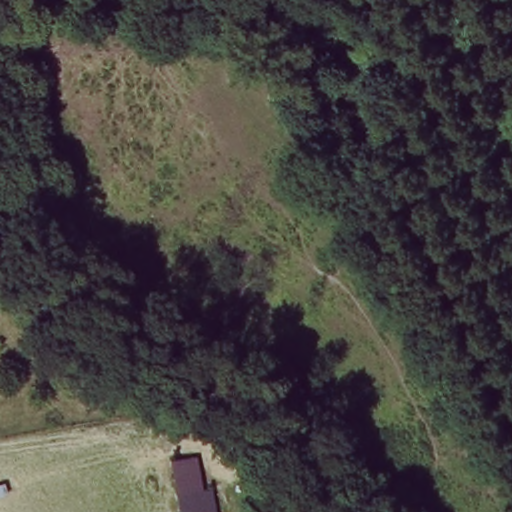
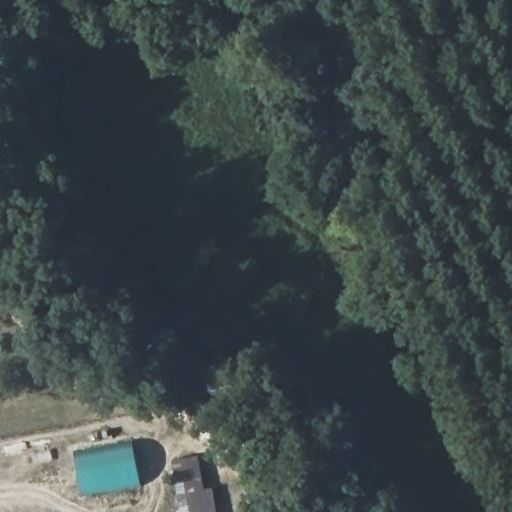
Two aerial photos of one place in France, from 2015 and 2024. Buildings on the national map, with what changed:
new [(134,443),(141,485),(82,496),(74,452),(134,443)]
unchanged [(181,512),(173,460),(198,456),(212,512),(181,512)]

